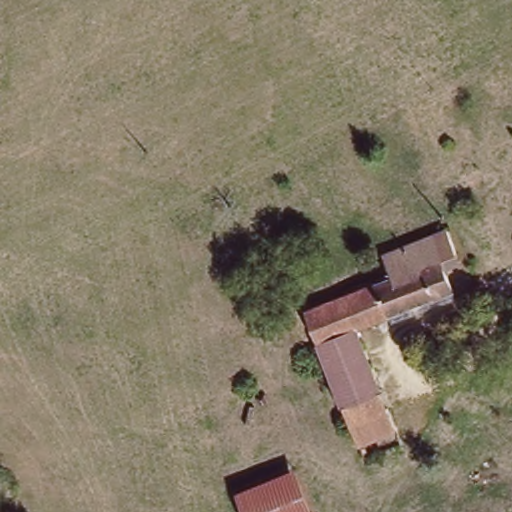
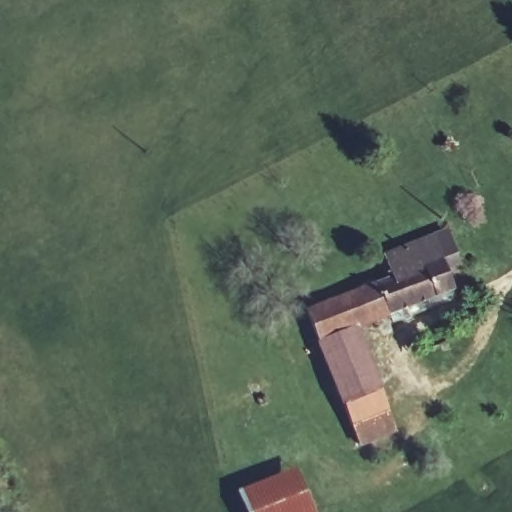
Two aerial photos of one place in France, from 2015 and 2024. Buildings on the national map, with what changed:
unchanged [(352,423),(304,314),(390,275),(381,253),(427,234),(442,227),(455,254),(438,260),(451,288),(355,329),(390,410),(397,429),(362,443),(354,423),(352,423)]
unchanged [(310,512),(247,512),(238,493),(290,470),(310,512)]

